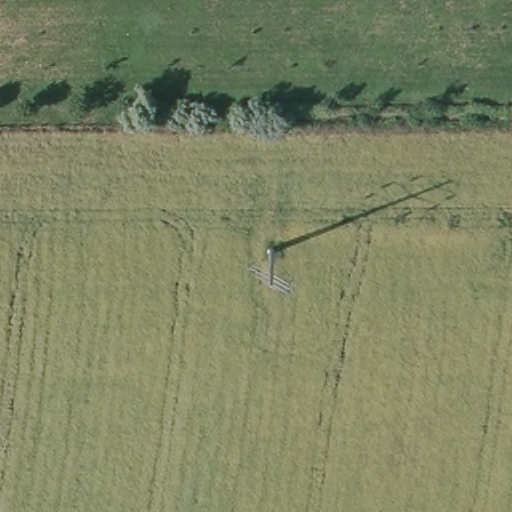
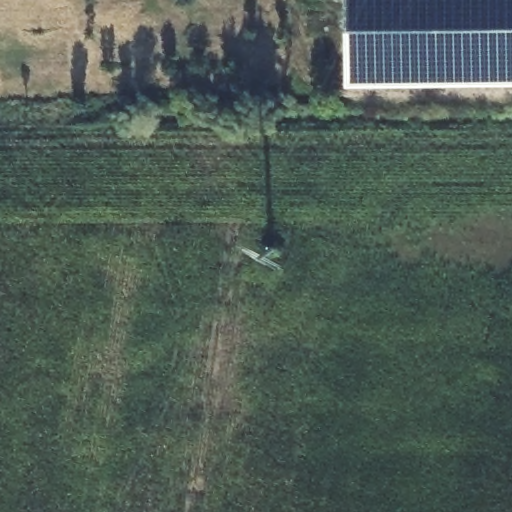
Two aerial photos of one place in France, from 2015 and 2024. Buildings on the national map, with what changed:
new [(512,85),(347,87),(347,0),(512,0),(512,85)]

